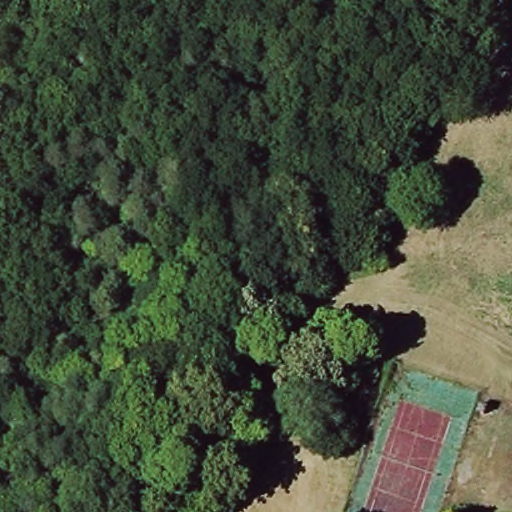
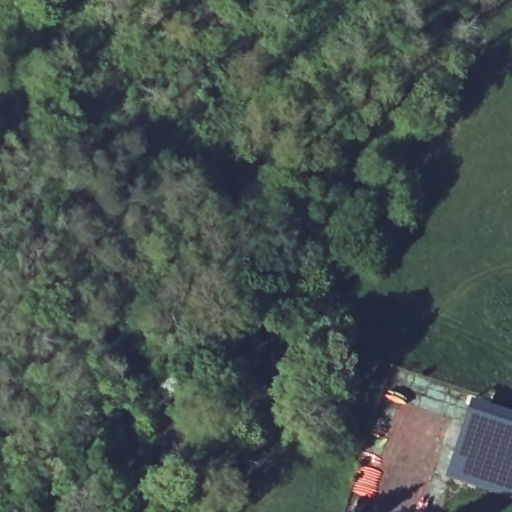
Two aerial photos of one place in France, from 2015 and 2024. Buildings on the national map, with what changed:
new [(508,411),(512,412),(512,496),(508,495),(443,476),(470,397),(508,411)]

